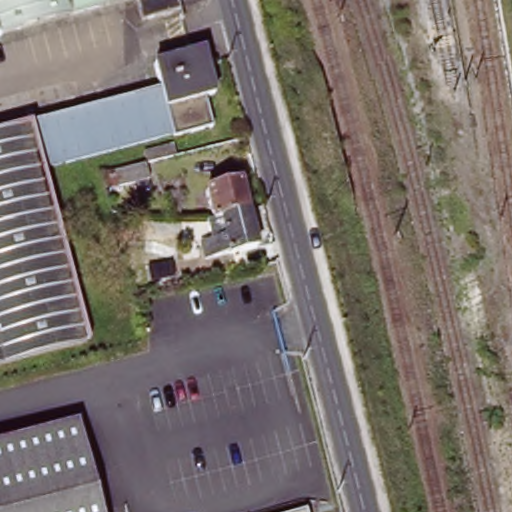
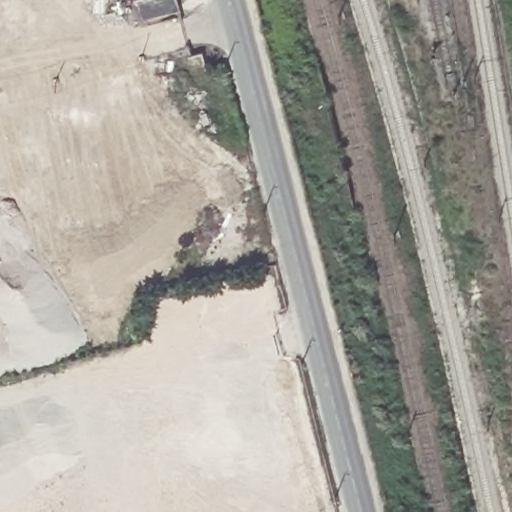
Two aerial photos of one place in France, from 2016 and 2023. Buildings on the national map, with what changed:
demolished [(0,35),(0,0),(130,0),(0,35)]
demolished [(180,11),(142,21),(136,0),(177,0),(180,11)]
demolished [(202,53),(206,69),(213,96),(203,99),(211,129),(172,139),(172,137),(160,90),(154,65),(202,53)]
demolished [(160,90),(172,137),(42,170),(28,125),(160,90)]
demolished [(28,125),(42,170),(87,342),(0,364),(0,132),(28,125)]
demolished [(146,164),(148,164),(151,179),(119,186),(115,171),(146,164)]
demolished [(243,185),(250,215),(216,224),(209,193),(243,185)]
demolished [(250,215),(259,250),(210,262),(208,258),(205,244),(215,241),(211,225),(216,224),(250,215)]
unchanged [(80,426),(99,498),(102,512),(0,512),(0,446),(80,426)]
unchanged [(305,512),(294,512),(304,510),(305,512)]

